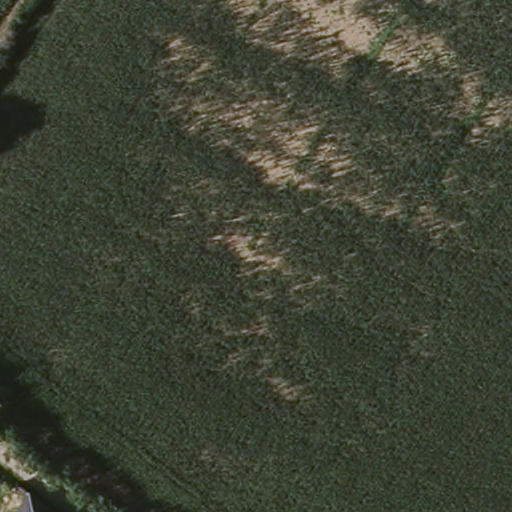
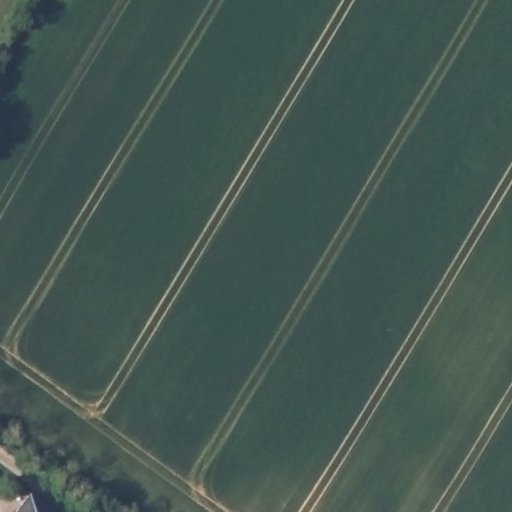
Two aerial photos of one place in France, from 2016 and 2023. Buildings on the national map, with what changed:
unchanged [(26,499),(41,512),(15,512),(26,499)]

